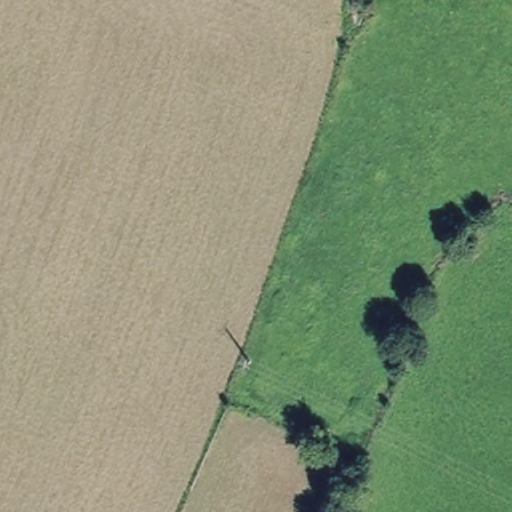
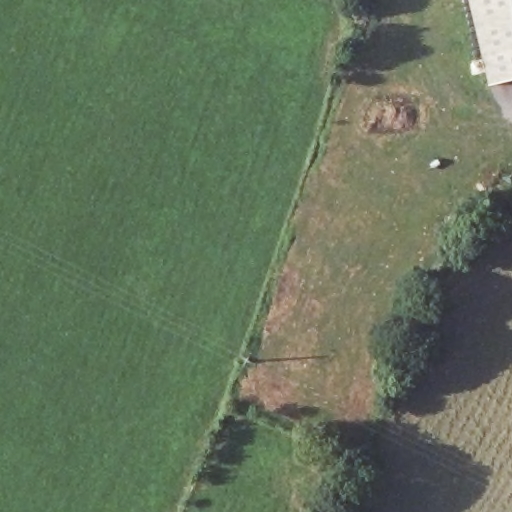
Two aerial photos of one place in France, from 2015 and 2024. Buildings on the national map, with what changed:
new [(471,0),(512,0),(512,77),(489,83),(471,0)]

